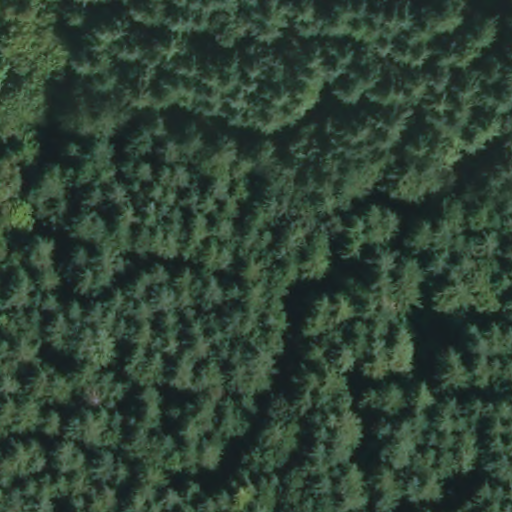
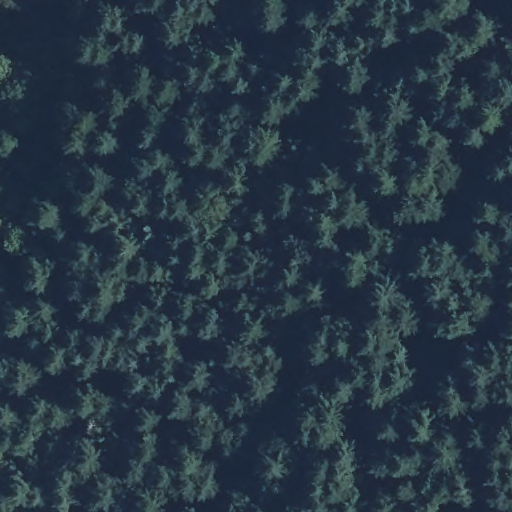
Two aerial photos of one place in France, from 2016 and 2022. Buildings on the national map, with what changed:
[]

